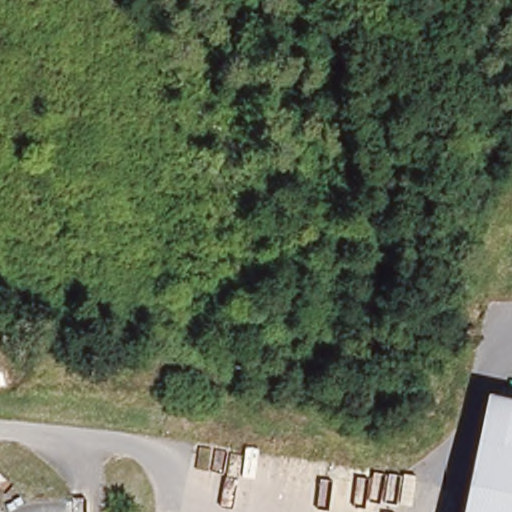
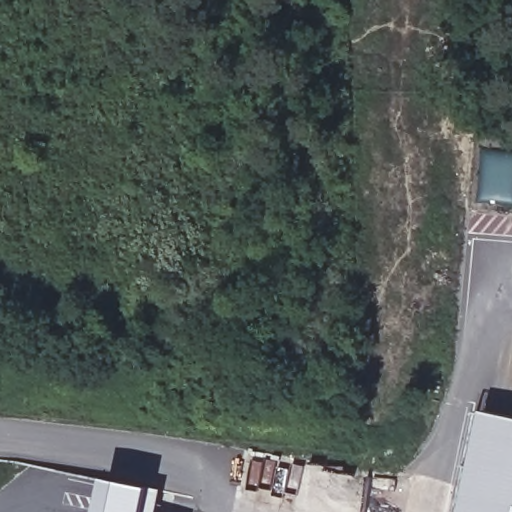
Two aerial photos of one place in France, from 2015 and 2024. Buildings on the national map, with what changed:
unchanged [(512,397),(512,512),(463,512),(488,392),(512,397)]
new [(162,490),(158,512),(98,512),(105,477),(162,490)]

